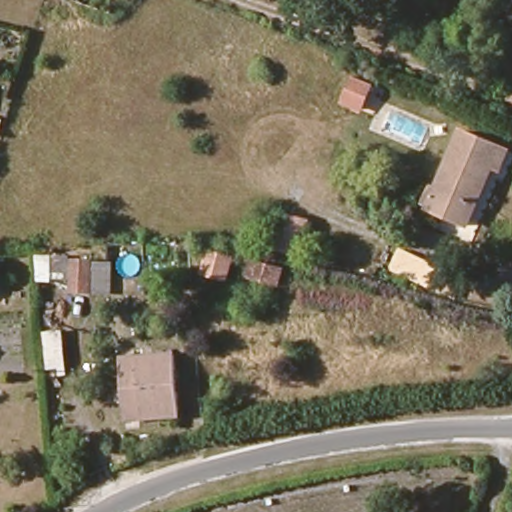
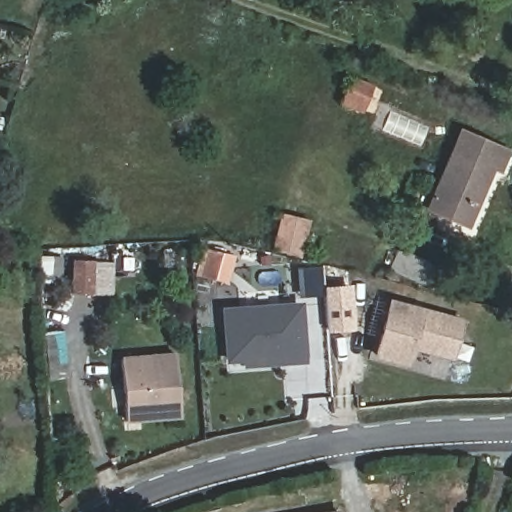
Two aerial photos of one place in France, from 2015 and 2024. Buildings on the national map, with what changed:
unchanged [(87,2),(77,0),(87,0),(87,2)]
unchanged [(375,117),(357,110),(367,85),(384,92),(375,117)]
unchanged [(470,225),(430,208),(430,207),(422,204),(431,184),(439,187),(463,130),(510,151),(502,170),(495,167),(470,225)]
unchanged [(308,262),(280,255),(288,218),(317,225),(308,262)]
new [(228,281),(200,274),(206,248),(234,257),(228,281)]
unchanged [(116,294),(69,292),(70,279),(38,282),(36,253),(72,260),(113,263),(116,294)]
unchanged [(286,290),(256,282),(259,266),(290,274),(286,290)]
new [(414,350),(410,365),(374,356),(389,298),(426,307),(465,317),(454,360),(414,350)]
new [(242,361),(226,363),(221,307),(302,302),(306,356),(307,362),(243,367),(242,361)]
unchanged [(178,416),(123,420),(118,358),(173,354),(178,416)]

